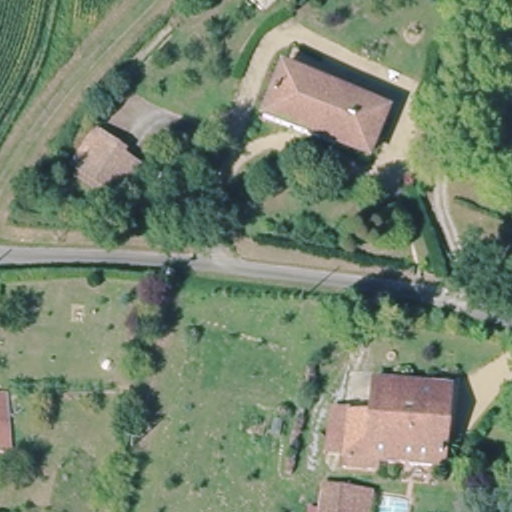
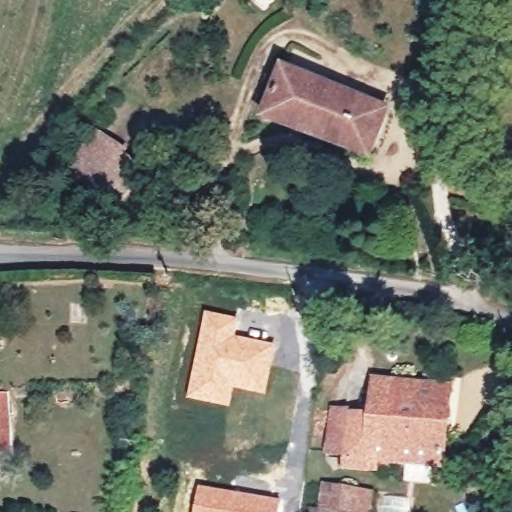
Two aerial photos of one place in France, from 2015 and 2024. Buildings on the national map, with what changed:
unchanged [(285,74),(394,112),(374,156),(261,120),(285,74)]
unchanged [(427,136),(433,107),(448,108),(440,139),(427,136)]
unchanged [(121,192),(72,160),(95,123),(121,140),(117,146),(141,162),(121,192)]
new [(205,311),(238,318),(235,335),(276,344),(265,395),(234,388),(230,408),(186,399),(205,311)]
unchanged [(321,461),(321,446),(333,401),(356,405),(362,368),(440,391),(422,470),(357,451),(357,467),(321,461)]
new [(11,451),(0,452),(0,393),(7,392),(11,451)]
new [(281,498),(279,512),(193,512),(198,485),(281,498)]
unchanged [(335,486),(365,495),(361,512),(319,512),(328,485),(335,486)]

